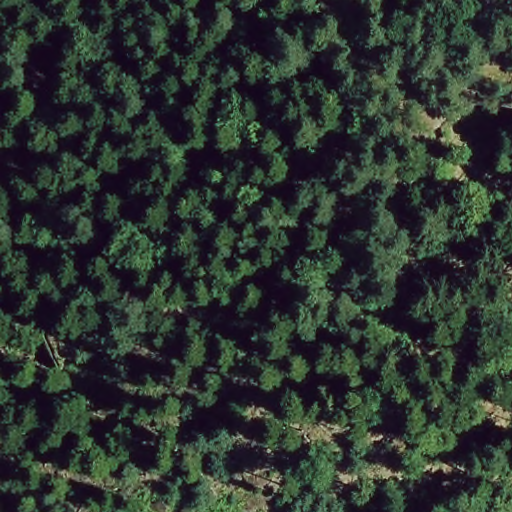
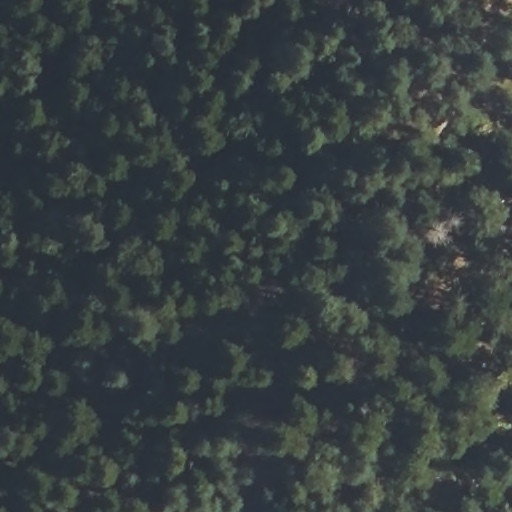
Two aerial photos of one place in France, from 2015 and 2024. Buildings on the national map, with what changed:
[]

